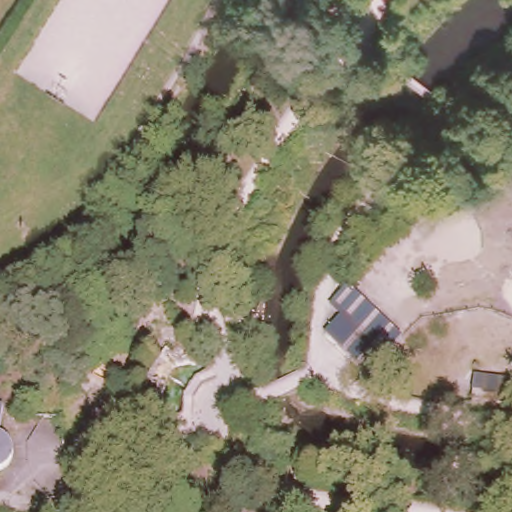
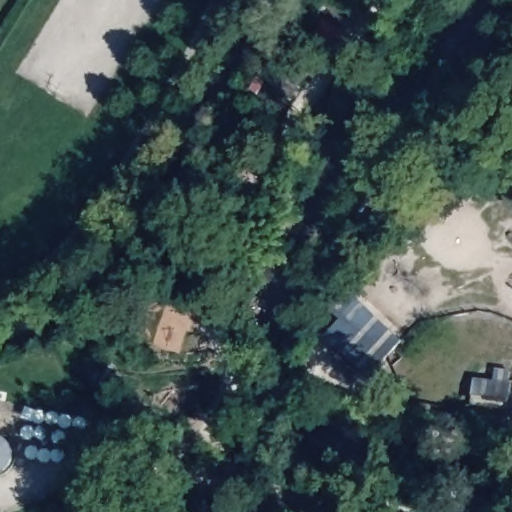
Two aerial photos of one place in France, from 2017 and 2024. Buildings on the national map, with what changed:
unchanged [(429,3),(431,0),(438,0),(434,7),(429,3)]
unchanged [(315,45),(307,39),(329,7),(337,12),(315,45)]
unchanged [(374,306),(365,316),(369,320),(357,332),(337,313),(359,291),(374,306)]
unchanged [(507,410),(472,405),(476,379),(511,383),(507,410)]
unchanged [(3,447),(3,453),(1,460),(0,461),(0,439),(1,441),(3,447)]
unchanged [(178,512),(172,510),(176,499),(189,503),(187,512),(178,512)]

